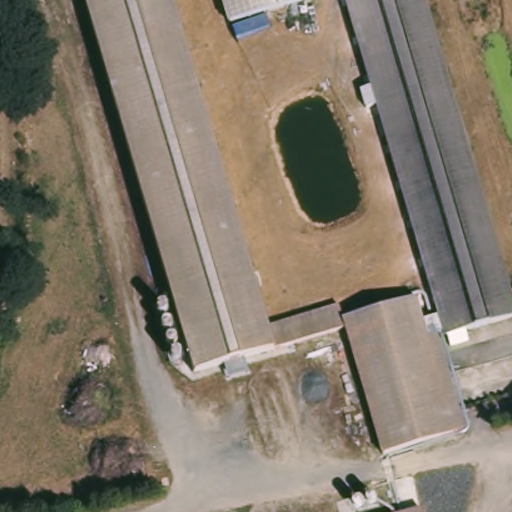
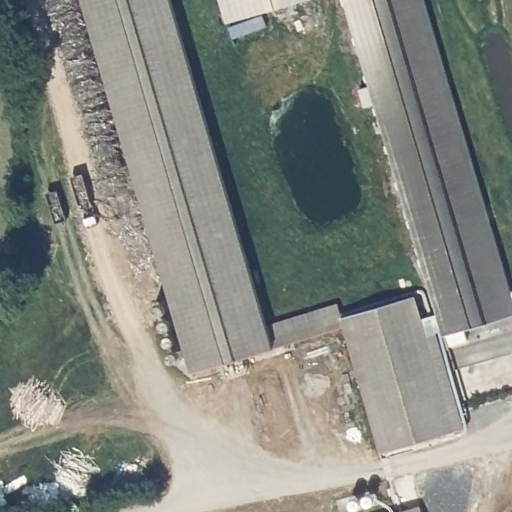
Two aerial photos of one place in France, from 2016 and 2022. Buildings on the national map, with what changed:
unchanged [(421,0),(508,291),(512,304),(512,313),(442,334),(469,430),(381,456),(342,331),(275,350),(193,371),(84,0),(173,0),(270,326),(338,305),(341,318),(414,295),(421,316),(417,318),(436,312),(345,0),(421,0)]
unchanged [(225,0),(318,0),(231,24),(225,0)]
unchanged [(508,291),(512,290),(512,304),(508,291)]
unchanged [(422,512),(405,512),(421,507),(422,512)]

